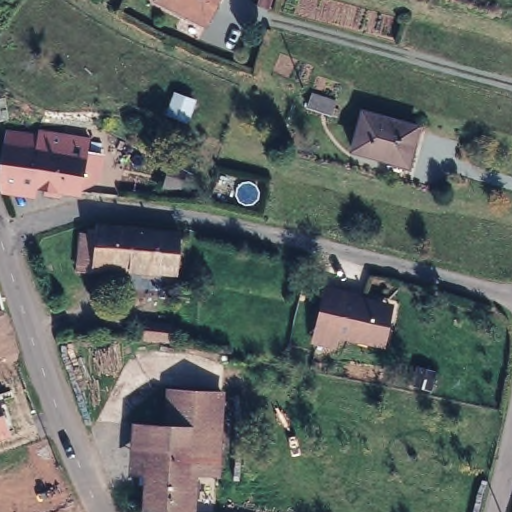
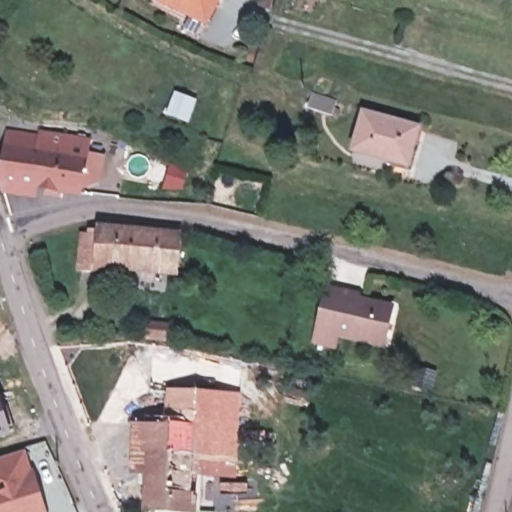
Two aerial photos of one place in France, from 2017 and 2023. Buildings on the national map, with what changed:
unchanged [(160,0),(209,0),(200,19),(160,0)]
unchanged [(190,85),(184,105),(165,100),(170,80),(190,85)]
unchanged [(330,89),(324,104),(302,97),(307,82),(330,89)]
unchanged [(415,131),(405,169),(350,155),(361,116),(415,131)]
unchanged [(75,196),(75,197),(47,195),(47,200),(35,199),(34,193),(26,193),(25,202),(0,200),(0,142),(0,138),(27,142),(29,136),(60,140),(61,136),(71,137),(70,146),(81,147),(77,181),(82,182),(82,196),(75,196)]
unchanged [(182,230),(185,230),(180,271),(160,269),(158,276),(147,275),(147,268),(100,265),(99,271),(82,270),(85,234),(93,234),(94,226),(102,227),(105,224),(182,230)]
unchanged [(312,342),(315,331),(324,294),(325,289),(347,294),(360,297),(359,302),(377,306),(389,309),(380,346),(367,343),(332,335),(330,346),(312,342)]
unchanged [(171,323),(167,343),(142,340),(146,320),(171,323)]
unchanged [(174,395),(225,398),(219,477),(193,476),(196,432),(172,431),(174,395)]
unchanged [(5,429),(5,431),(0,433),(0,396),(10,428),(5,429)]
unchanged [(172,431),(196,432),(193,476),(190,512),(146,512),(149,482),(142,481),(143,476),(149,476),(152,429),(172,431)]
new [(0,458),(25,451),(30,469),(33,468),(47,512),(0,512),(0,458)]

